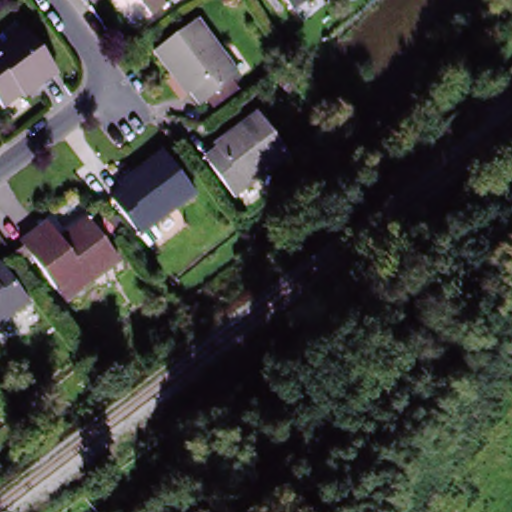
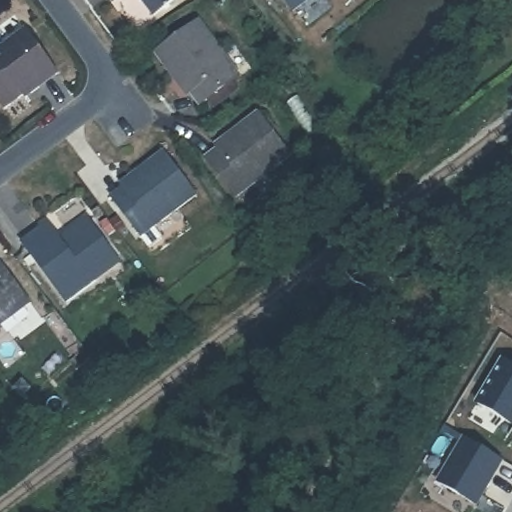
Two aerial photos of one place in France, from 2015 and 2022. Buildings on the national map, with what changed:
unchanged [(137,0),(173,0),(149,18),(137,0)]
unchanged [(283,0),(303,0),(289,10),(283,0)]
unchanged [(172,76),(155,54),(198,22),(239,77),(200,106),(191,94),(187,97),(172,76)]
unchanged [(21,92),(4,105),(0,100),(0,45),(24,27),(57,71),(36,87),(24,96),(21,92)]
unchanged [(218,154),(214,149),(235,134),(258,116),(291,160),(235,201),(206,162),(218,154)]
unchanged [(121,188),(118,184),(138,169),(161,151),(193,195),(138,237),(108,198),(121,188)]
unchanged [(93,282),(65,304),(20,243),(46,224),(58,240),(86,220),(113,257),(118,264),(93,282)]
unchanged [(4,265),(33,304),(0,329),(0,268),(4,265)]
new [(512,423),(480,405),(505,364),(512,368),(512,423)]
unchanged [(280,432),(286,415),(313,425),(307,442),(280,432)]
new [(479,507),(442,485),(469,439),(506,461),(479,507)]

